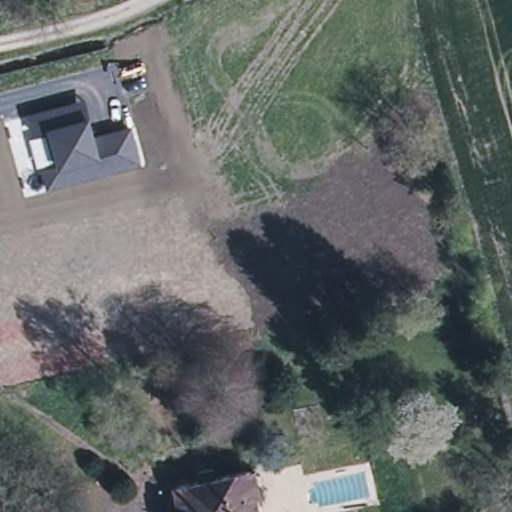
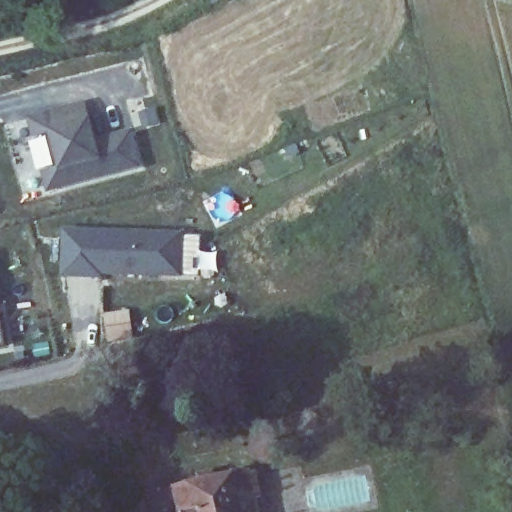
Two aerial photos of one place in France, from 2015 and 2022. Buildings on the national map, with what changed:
unchanged [(84,103),(94,136),(130,130),(139,166),(50,190),(46,169),(58,167),(49,133),(31,136),(31,116),(84,103)]
new [(181,277),(103,275),(103,279),(60,277),(62,229),(183,232),(181,277)]
new [(0,346),(0,320),(4,345),(0,346)]
unchanged [(196,483),(194,474),(209,471),(211,479),(243,472),(244,474),(251,472),(256,497),(249,498),(253,512),(178,512),(173,488),(196,483)]

